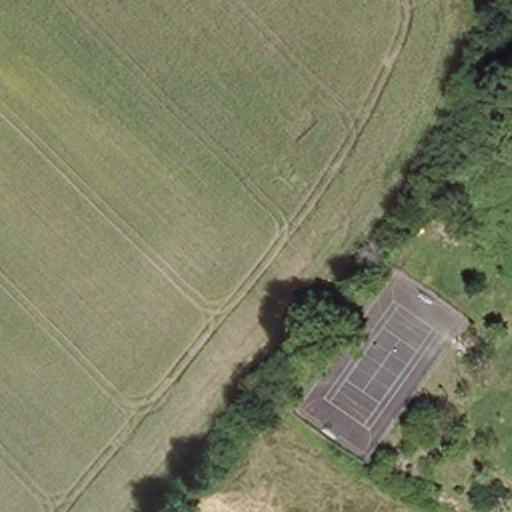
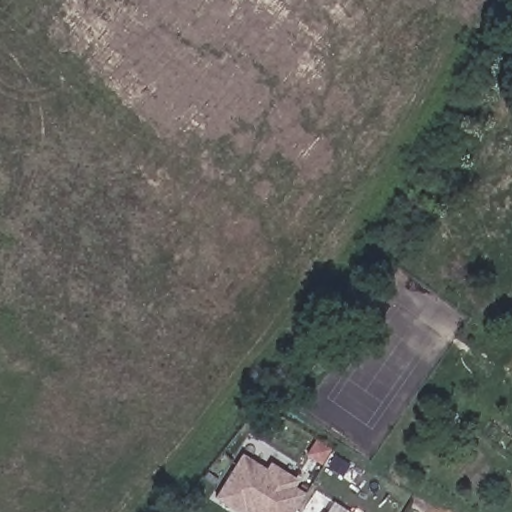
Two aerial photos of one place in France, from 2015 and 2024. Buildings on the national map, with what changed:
new [(243,512),(237,512),(214,497),(242,452),(266,469),(270,463),(297,480),(293,487),(305,494),(294,512),(244,512),(244,511),(243,512)]

